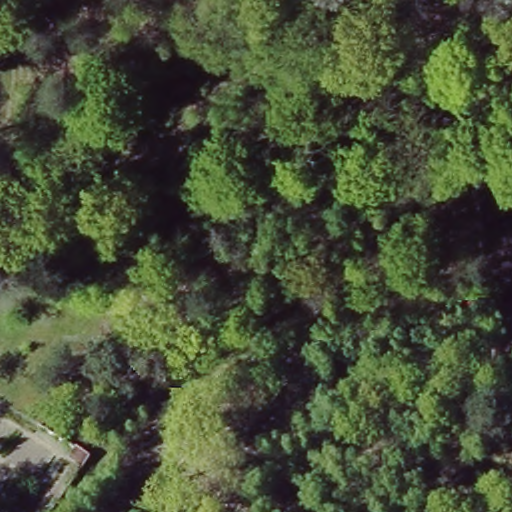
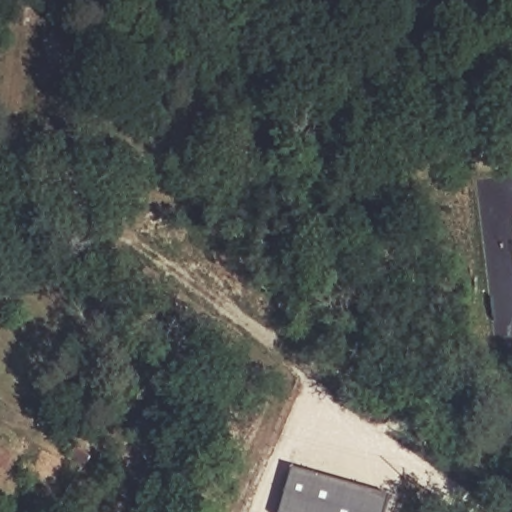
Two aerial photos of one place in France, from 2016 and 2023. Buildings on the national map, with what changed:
new [(281,512),(292,470),(390,498),(386,512),(281,512)]

